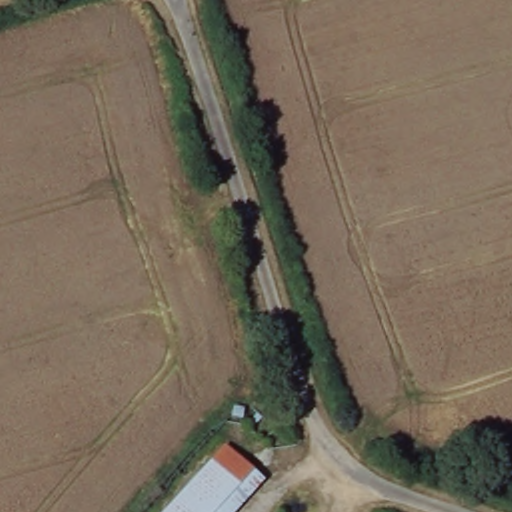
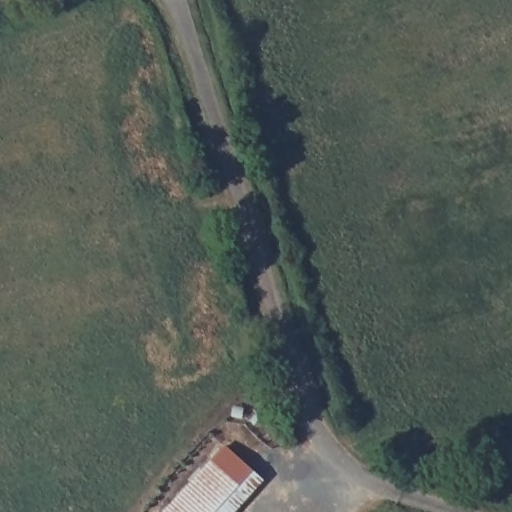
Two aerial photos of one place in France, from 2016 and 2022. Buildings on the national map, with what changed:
unchanged [(246,468),(207,512),(159,512),(219,443),(246,468)]
unchanged [(261,482),(230,512),(207,512),(246,468),(261,482)]

